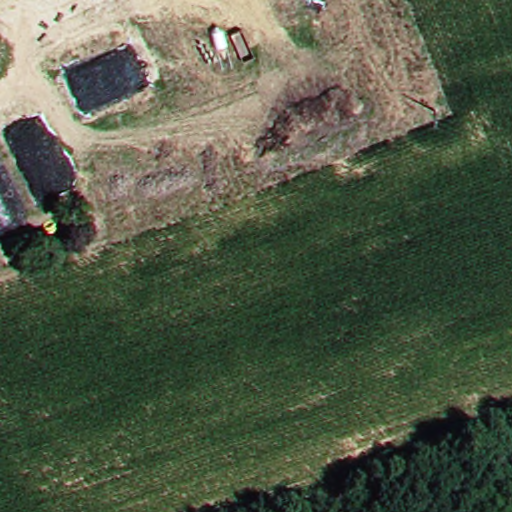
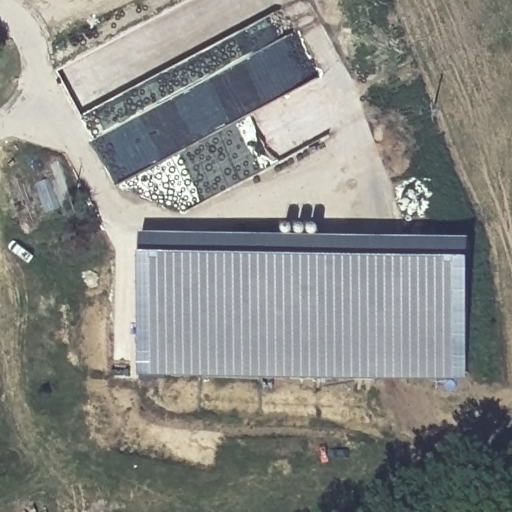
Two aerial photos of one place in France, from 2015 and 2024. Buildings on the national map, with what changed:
new [(146,239),(472,242),(471,382),(145,379),(146,239)]

